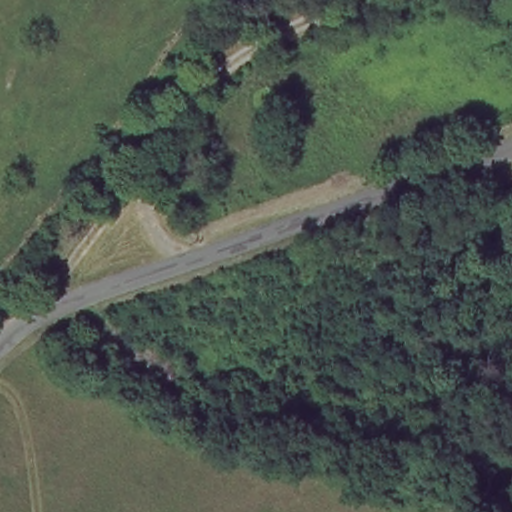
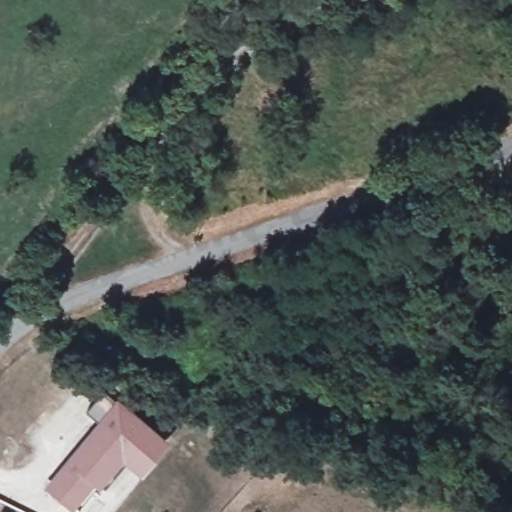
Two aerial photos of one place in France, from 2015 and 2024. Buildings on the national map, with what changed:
new [(171,456),(142,489),(121,473),(100,499),(92,493),(76,512),(64,512),(47,496),(121,411),(171,456)]

